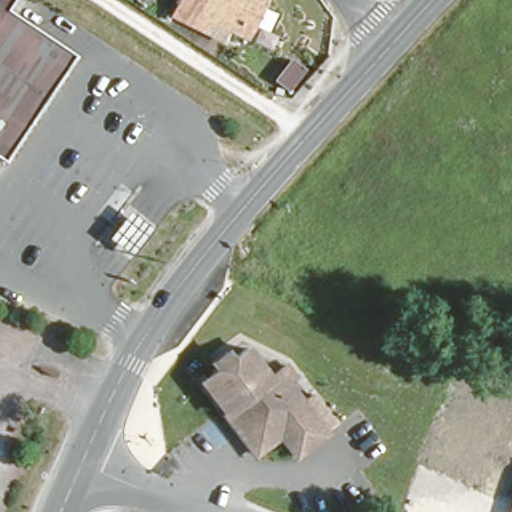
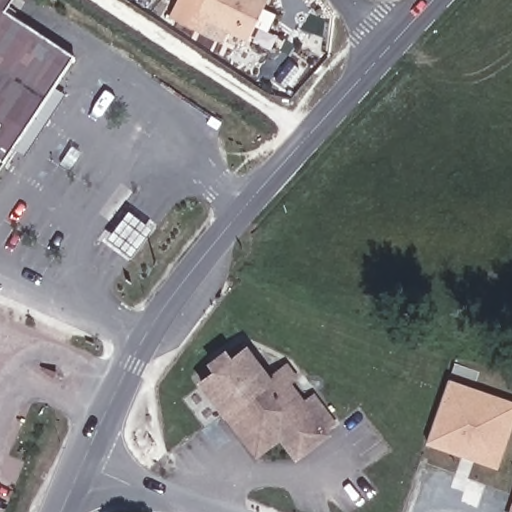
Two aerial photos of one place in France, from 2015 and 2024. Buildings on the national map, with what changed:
unchanged [(0,16),(71,62),(2,166),(0,165),(0,0),(9,0),(10,1),(0,16)]
unchanged [(175,4),(177,0),(266,0),(246,40),(211,22),(206,32),(170,14),(175,4)]
new [(0,170),(0,165),(2,166),(0,170)]
unchanged [(127,211),(152,231),(131,261),(104,242),(127,211)]
unchanged [(221,414),(197,382),(212,371),(207,365),(221,353),(227,360),(241,348),(265,379),(282,365),(291,377),(283,383),(322,434),(292,456),(276,436),(252,454),(221,414)]
new [(448,381),(512,405),(512,424),(497,468),(428,443),(448,381)]
unchanged [(512,503),(512,512),(509,512),(512,503)]

